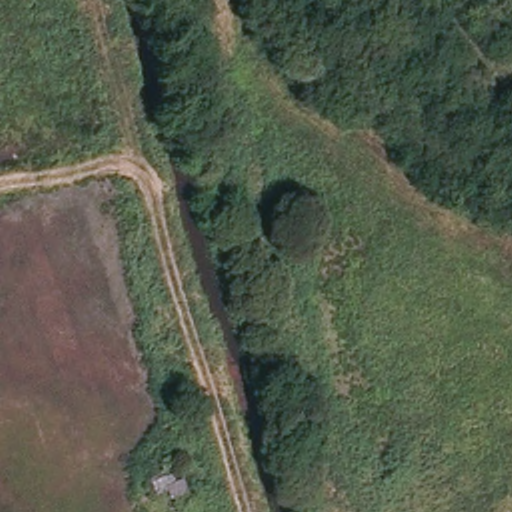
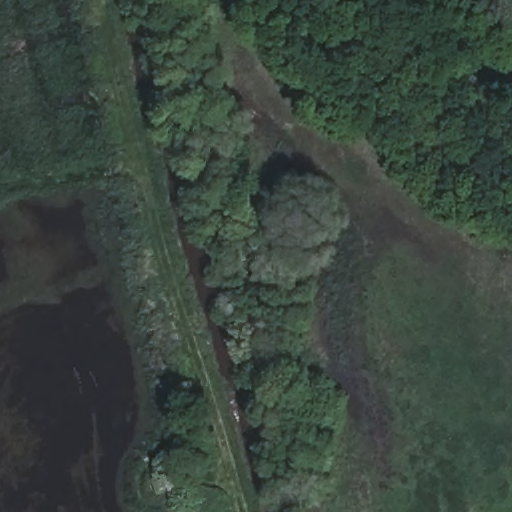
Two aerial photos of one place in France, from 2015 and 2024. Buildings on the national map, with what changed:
unchanged [(169,488),(164,476),(188,465),(193,477),(169,488)]

